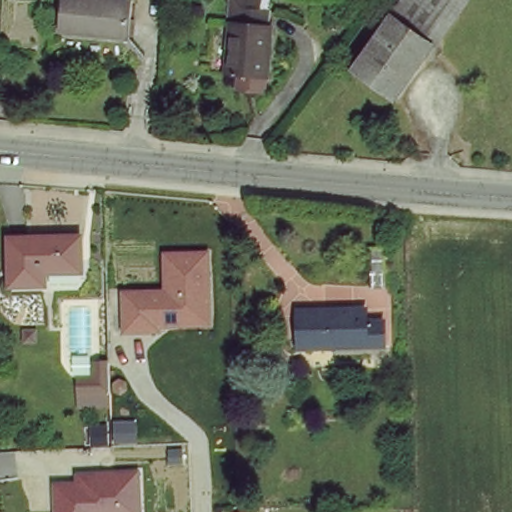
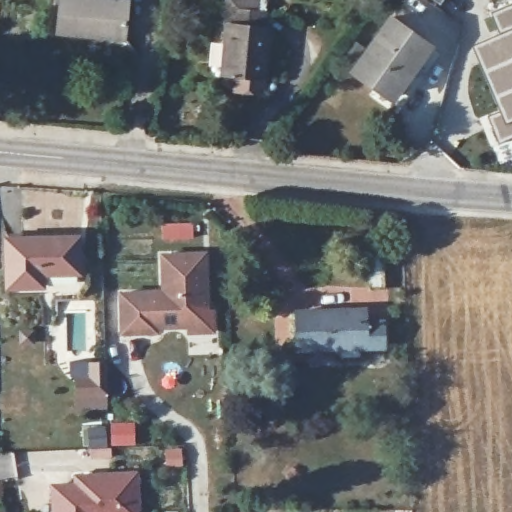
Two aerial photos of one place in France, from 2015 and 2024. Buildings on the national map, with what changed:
unchanged [(132,6),(130,40),(61,36),(65,0),(132,6)]
unchanged [(240,22),(237,39),(228,38),(228,0),(270,0),(270,25),(240,22)]
unchanged [(390,26),(410,0),(456,0),(465,7),(427,55),(390,26)]
new [(504,123),(510,121),(480,44),(500,35),(492,14),(512,6),(512,139),(510,140),(504,123)]
unchanged [(270,25),(270,42),(279,44),(275,93),(223,90),(228,38),(237,39),(240,22),(270,25)]
unchanged [(389,103),(352,76),(390,26),(427,55),(389,103)]
unchanged [(85,236),(86,272),(45,272),(45,286),(12,286),(11,235),(85,236)]
unchanged [(351,287),(351,249),(370,249),(371,287),(351,287)]
unchanged [(162,288),(160,252),(207,252),(209,327),(158,327),(158,336),(120,337),(119,292),(162,288)]
unchanged [(297,354),(296,317),(364,316),(365,327),(383,327),(385,352),(297,354)]
unchanged [(65,389),(65,380),(78,380),(77,365),(95,364),(95,380),(96,388),(96,398),(65,398),(65,389)]
unchanged [(73,472),(138,467),(142,512),(53,512),(50,483),(73,482),(73,472)]

